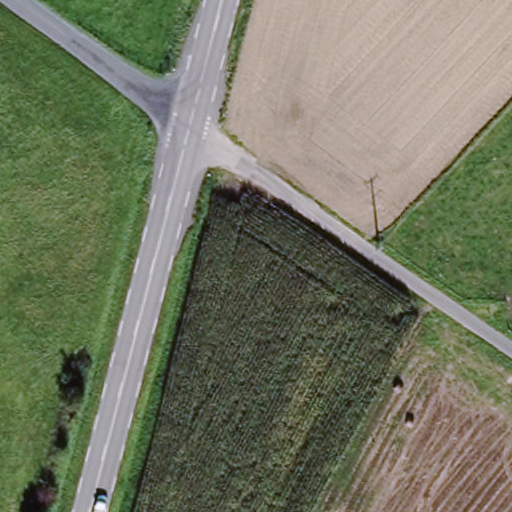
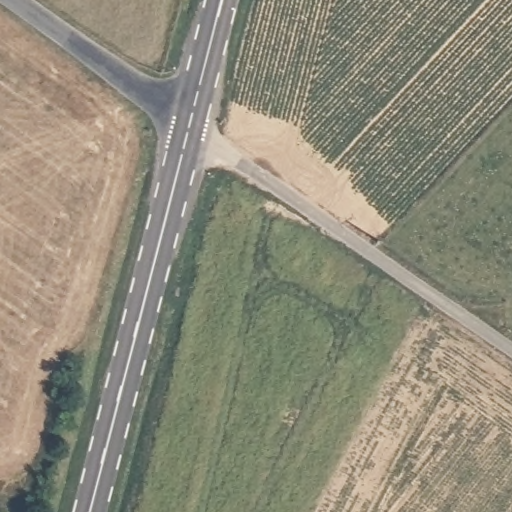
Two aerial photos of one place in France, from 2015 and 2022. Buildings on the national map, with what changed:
[]

